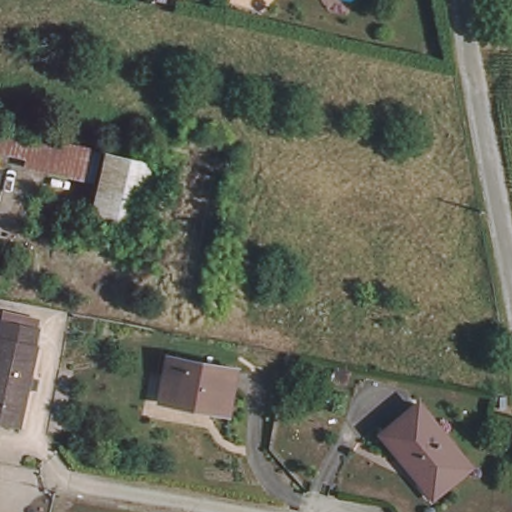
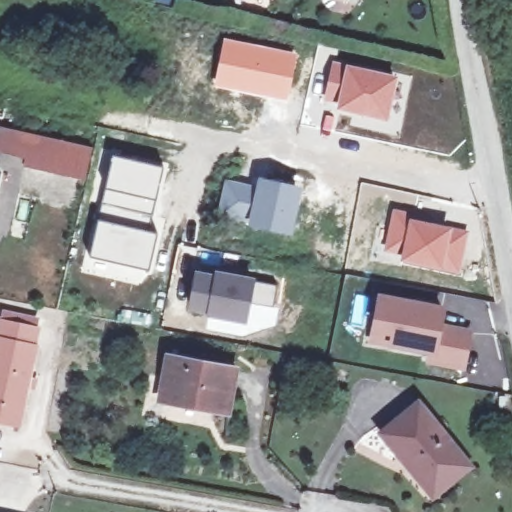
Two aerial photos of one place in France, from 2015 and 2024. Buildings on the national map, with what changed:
new [(422,74),(420,60),(402,64),(401,58),(445,50),(436,0),(448,0),(460,68),(422,74)]
new [(223,36),(297,52),(287,101),(212,86),(223,36)]
new [(332,59),(397,75),(387,121),(335,109),(337,103),(323,100),(332,59)]
unchanged [(79,169),(21,159),(22,151),(0,146),(0,122),(87,139),(79,169)]
unchanged [(95,217),(110,158),(155,165),(170,168),(163,199),(148,197),(141,224),(95,217)]
new [(255,184),(257,175),(304,186),(292,238),(245,224),(255,184)]
new [(223,178),(255,184),(245,224),(215,217),(223,178)]
new [(459,275),(399,262),(400,256),(383,253),(392,208),(408,211),(408,216),(469,230),(459,275)]
new [(192,303),(198,270),(218,274),(219,269),(280,280),(276,303),(251,299),(247,317),(212,310),(212,307),(192,303)]
new [(378,322),(384,292),(446,303),(442,320),(473,326),(467,358),(437,352),(438,346),(396,338),(376,334),(378,322)]
unchanged [(37,328),(22,411),(0,406),(0,321),(37,328)]
unchanged [(226,407),(158,398),(168,357),(233,364),(226,407)]
unchanged [(424,399),(472,460),(445,479),(432,466),(420,475),(384,428),(424,399)]

